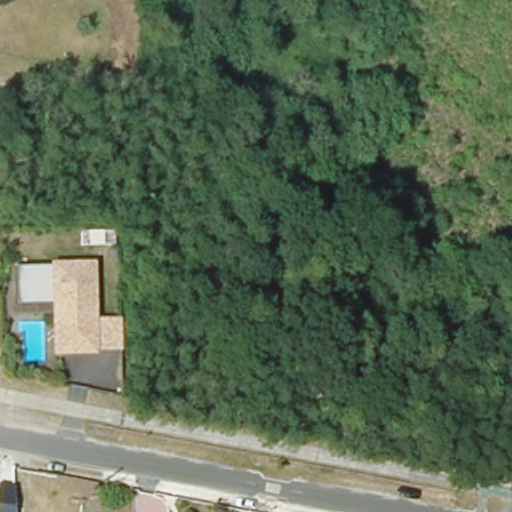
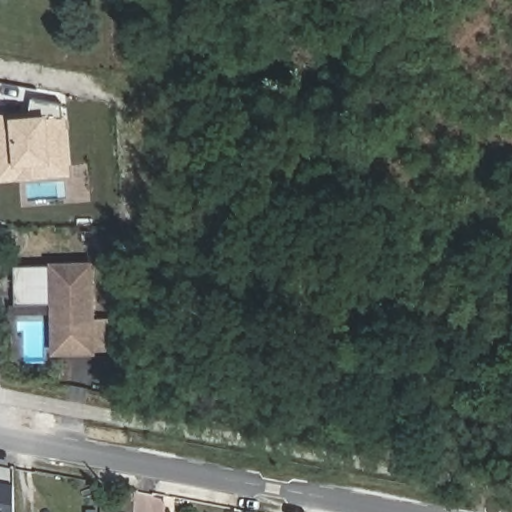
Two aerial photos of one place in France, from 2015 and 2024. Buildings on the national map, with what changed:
new [(10,114),(11,117),(30,116),(32,98),(63,104),(64,117),(67,116),(71,177),(0,182),(0,115),(10,114)]
unchanged [(97,261),(99,356),(52,357),(51,304),(19,305),(19,268),(50,267),(50,262),(97,261)]
unchanged [(16,512),(0,512),(0,482),(14,483),(16,512)]

